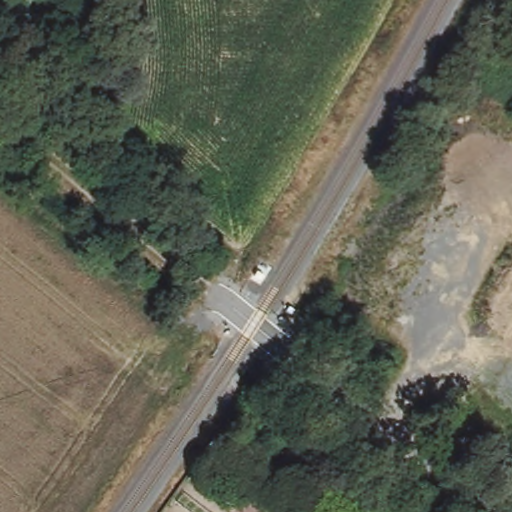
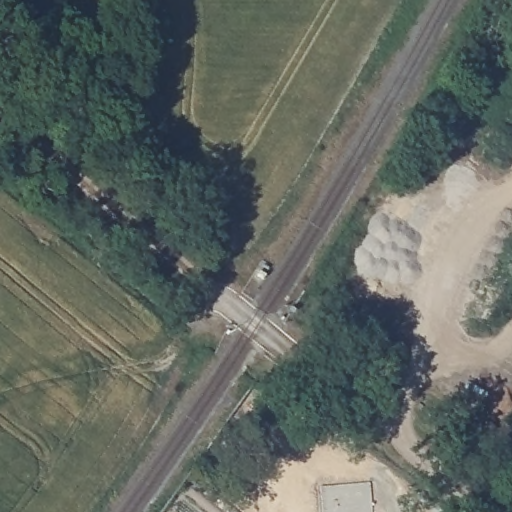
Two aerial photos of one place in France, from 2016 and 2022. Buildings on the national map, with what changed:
unchanged [(232,452),(216,475),(204,465),(220,443),(232,452)]

